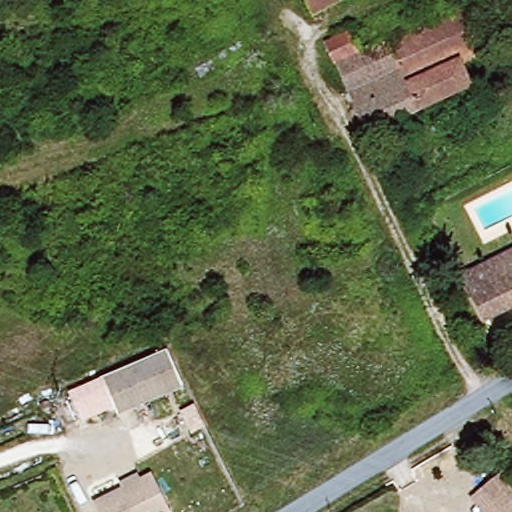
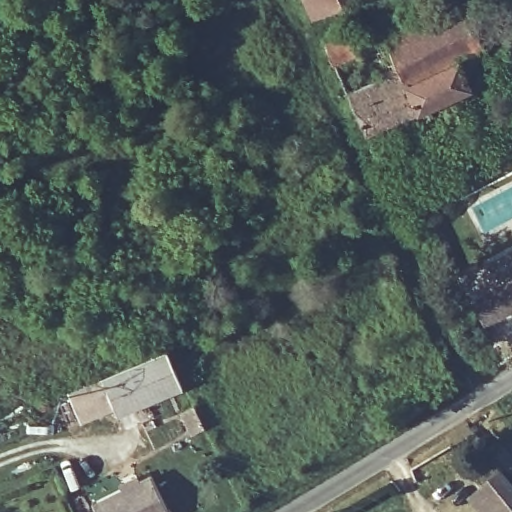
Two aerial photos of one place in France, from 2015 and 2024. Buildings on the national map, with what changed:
unchanged [(313,12),(307,0),(342,0),(313,12)]
unchanged [(397,35),(418,26),(468,4),(494,64),(471,74),(476,85),(373,131),(333,43),(357,32),(361,39),(393,26),(397,35)]
unchanged [(476,247),(512,229),(512,308),(510,309),(476,247)]
unchanged [(487,321),(455,257),(476,247),(510,309),(487,321)]
unchanged [(167,349),(186,387),(119,415),(103,376),(167,349)]
unchanged [(81,420),(69,391),(103,376),(116,407),(81,420)]
unchanged [(511,467),(512,468),(512,508),(492,483),(511,467)]
unchanged [(103,512),(99,501),(157,475),(173,512),(103,512)]
unchanged [(492,483),(512,508),(512,512),(481,512),(471,500),(492,483)]

